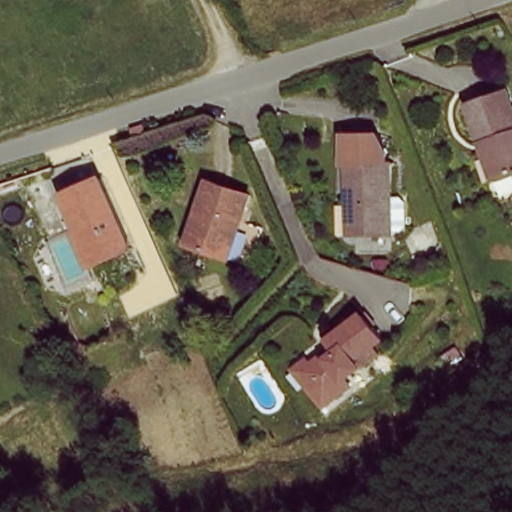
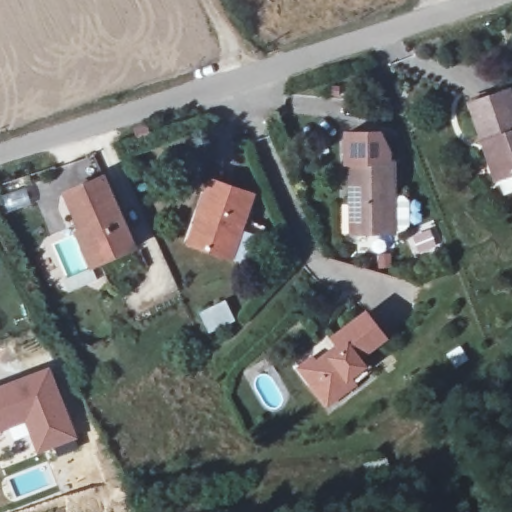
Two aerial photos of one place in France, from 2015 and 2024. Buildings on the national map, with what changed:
unchanged [(505,177),(494,138),(485,141),(475,104),(510,93),(512,98),(512,174),(505,177)]
unchanged [(411,196),(412,221),(407,226),(397,226),(397,230),(355,229),(355,161),(353,161),(353,130),(387,130),(395,156),(396,191),(406,191),(411,196)]
unchanged [(195,206),(198,207),(210,175),(250,191),(241,215),(263,223),(249,260),(191,236),(184,233),(195,206)]
unchanged [(70,195),(107,180),(137,250),(93,270),(69,217),(77,214),(70,195)]
unchanged [(342,342),(339,334),(369,311),(387,335),(363,353),(369,362),(355,373),(342,342)]
unchanged [(303,364),(316,353),(322,359),(342,342),(355,373),(359,381),(334,402),(303,364)]
new [(79,439),(39,456),(25,422),(0,432),(0,386),(51,368),(79,439)]

